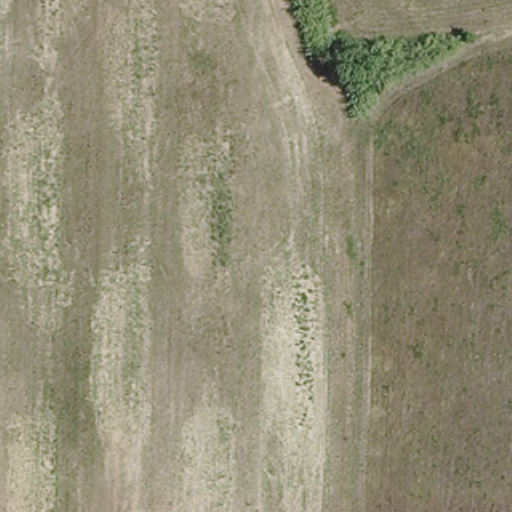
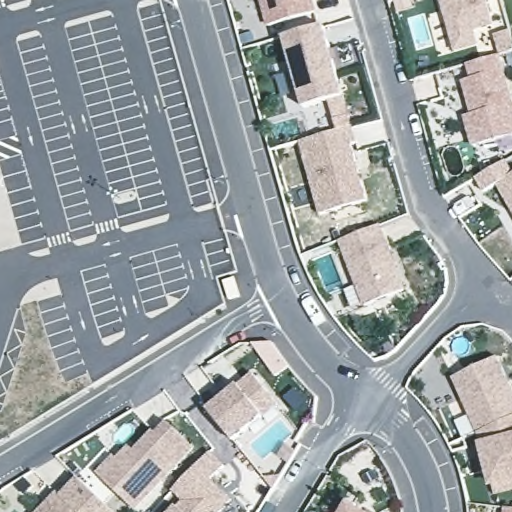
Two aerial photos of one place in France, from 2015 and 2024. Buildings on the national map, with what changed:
new [(317,16),(271,29),(262,0),(312,0),(313,2),(317,16)]
new [(476,29),(480,44),(456,51),(441,0),(488,0),(495,24),(476,29)]
new [(344,97),(305,107),(285,37),(324,26),(344,97)]
new [(472,148),(464,116),(471,114),(463,81),(472,79),(468,64),(501,55),(512,97),(512,137),(472,148)]
new [(360,144),(353,145),(369,202),(319,214),(300,141),(354,126),(360,144)]
new [(512,171),(512,209),(498,184),(485,192),(477,178),(506,160),(512,171)]
new [(379,219),(404,284),(365,299),(340,234),(379,219)]
new [(450,380),(498,358),(512,390),(512,405),(469,424),(450,380)]
new [(253,367),(278,398),(233,434),(208,403),(253,367)]
new [(512,478),(489,484),(487,479),(485,479),(469,424),(512,405),(512,480),(512,478)]
new [(114,451),(117,453),(129,441),(134,445),(153,425),(159,431),(170,420),(193,441),(133,502),(97,468),(114,451)]
new [(184,494),(173,484),(210,445),(224,459),(210,473),(232,493),(213,512),(166,512),(184,494)]
new [(112,512),(37,512),(57,492),(61,496),(78,478),(112,512)]
new [(348,497),(374,512),(339,512),(348,497)]
new [(504,509),(512,509),(512,512),(504,512),(504,509)]

